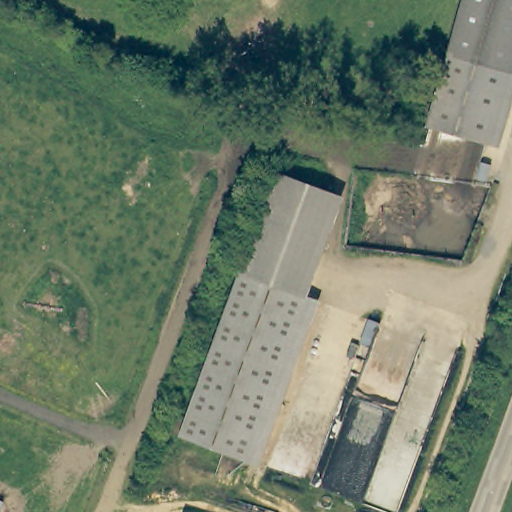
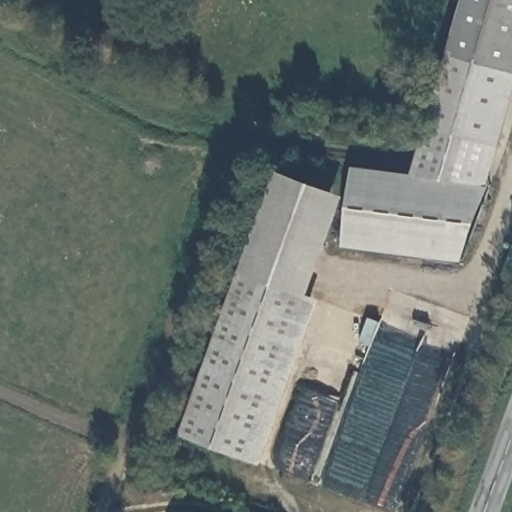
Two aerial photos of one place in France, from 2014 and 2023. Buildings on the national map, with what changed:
unchanged [(451,59),(468,0),(512,0),(512,65),(491,139),(433,122),(451,59)]
new [(491,139),(500,141),(487,184),(490,185),(462,261),(344,246),(353,166),(414,174),(428,121),(433,122),(491,139)]
unchanged [(279,170),(343,195),(306,291),(242,267),(279,170)]
unchanged [(178,432),(242,267),(306,291),(242,457),(178,432)]
unchanged [(186,510),(194,512),(186,512),(186,510)]

